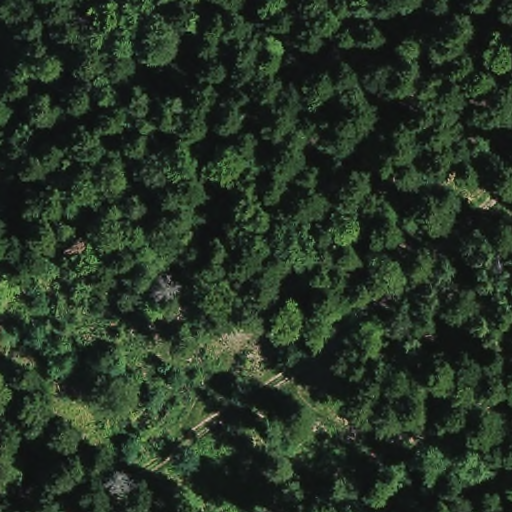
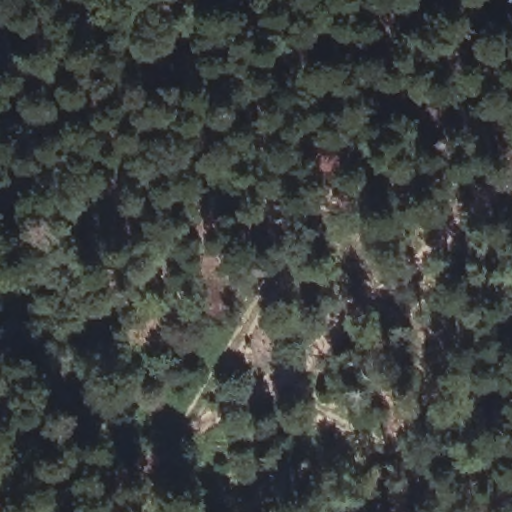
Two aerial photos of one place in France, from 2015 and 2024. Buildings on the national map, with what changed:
unchanged [(29,497),(39,460),(73,464),(63,502),(29,497)]

